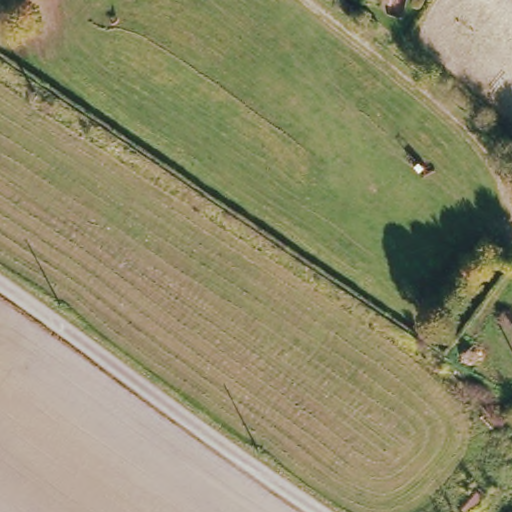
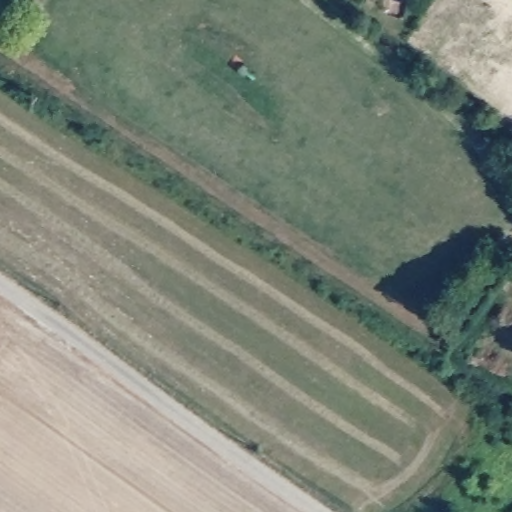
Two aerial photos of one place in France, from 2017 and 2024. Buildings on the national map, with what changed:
[]

